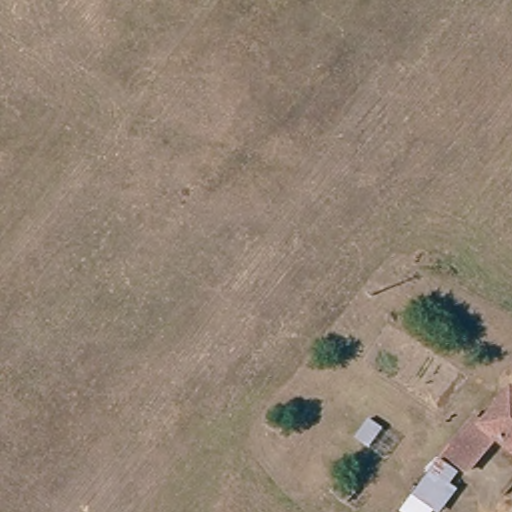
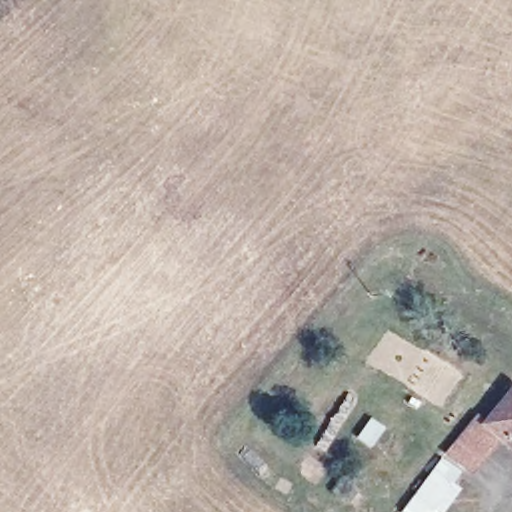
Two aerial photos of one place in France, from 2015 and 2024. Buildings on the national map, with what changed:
unchanged [(499,434),(499,433),(488,423),(512,393),(512,445),(499,434)]
unchanged [(474,470),(454,455),(481,417),(488,423),(499,433),(499,434),(474,470)]
unchanged [(424,477),(432,467),(442,475),(434,485),(444,493),(430,512),(425,512),(408,498),(424,477)]

